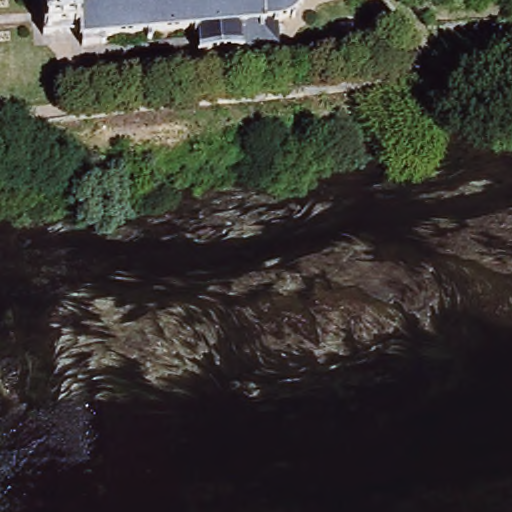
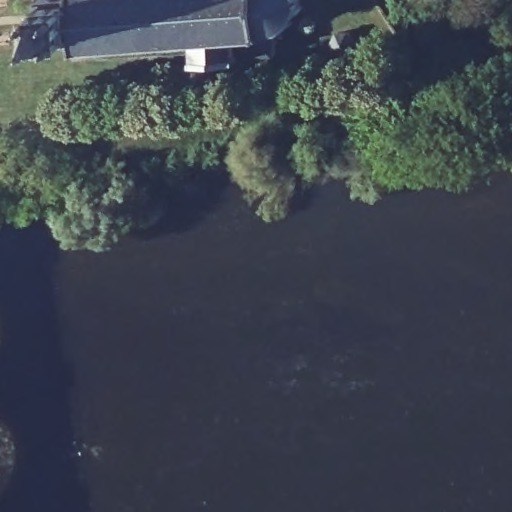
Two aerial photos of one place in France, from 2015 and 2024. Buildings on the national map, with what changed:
unchanged [(75,0),(80,37),(45,40),(42,1),(47,0),(75,0)]
unchanged [(298,10),(293,17),(286,23),(275,25),(277,49),(197,56),(197,51),(200,48),(199,38),(195,38),(195,32),(155,35),(155,37),(152,37),(150,41),(145,41),(140,36),(111,39),(107,46),(84,47),(81,44),(80,37),(75,0),(301,0),(301,1),(298,10)]
unchanged [(357,39),(352,50),(340,51),(333,43),(337,31),(349,30),(357,39)]

